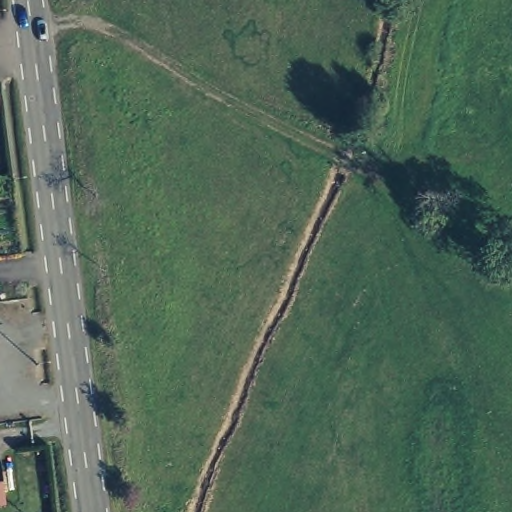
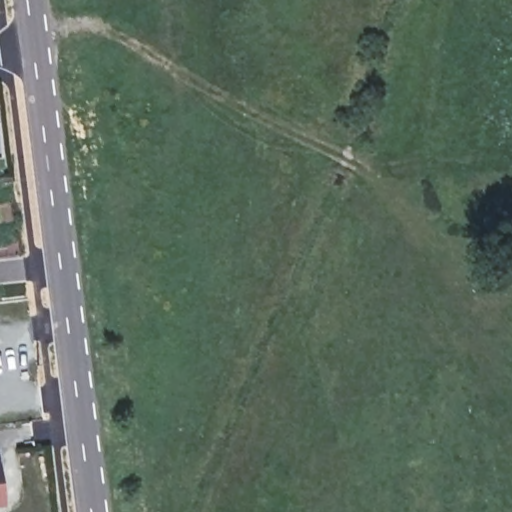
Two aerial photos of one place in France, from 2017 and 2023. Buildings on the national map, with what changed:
unchanged [(3,236),(0,236),(0,211),(3,236)]
unchanged [(8,465),(13,506),(0,508),(0,466),(8,465)]

